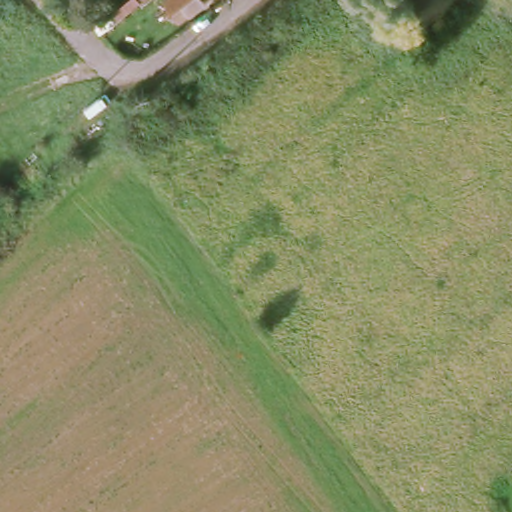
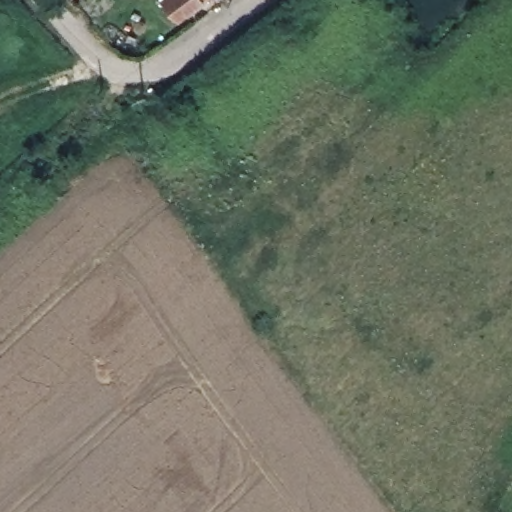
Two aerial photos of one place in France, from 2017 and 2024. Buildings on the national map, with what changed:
unchanged [(162,0),(204,0),(179,20),(162,0)]

